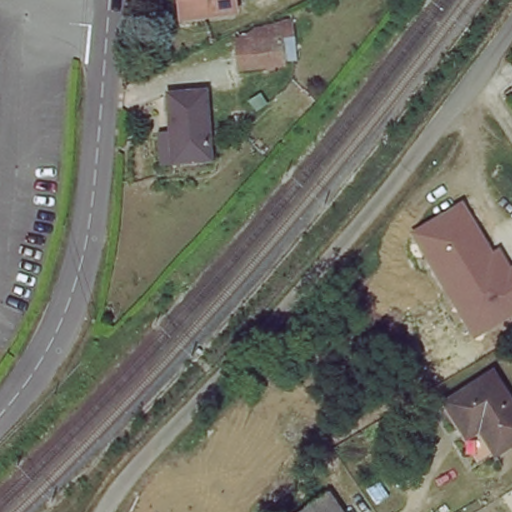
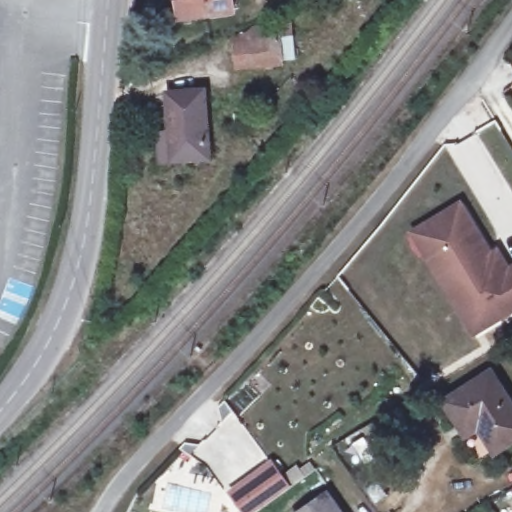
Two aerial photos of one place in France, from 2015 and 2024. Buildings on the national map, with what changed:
unchanged [(180,17),(179,0),(225,0),(225,14),(180,17)]
unchanged [(280,59),(239,61),(238,39),(278,37),(280,59)]
unchanged [(206,159),(160,159),(157,131),(168,131),(167,92),(202,89),(206,159)]
unchanged [(480,339),(415,231),(466,202),(495,249),(502,246),(512,263),(512,321),(480,339)]
unchanged [(454,428),(442,406),(490,378),(512,415),(512,446),(493,456),(479,433),(462,442),(454,428)]
new [(270,461),(289,489),(255,512),(236,512),(223,494),(270,461)]
unchanged [(330,501),(338,512),(315,512),(330,501)]

